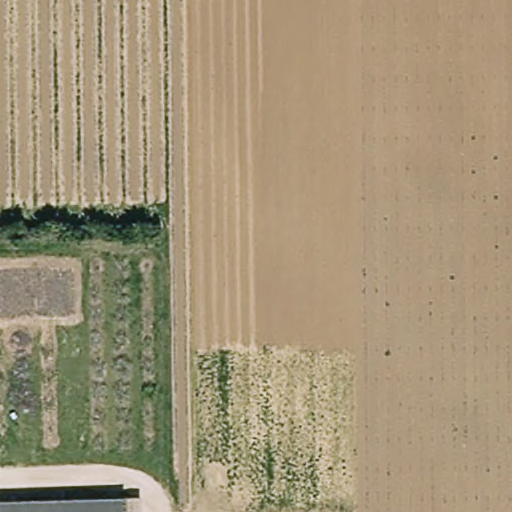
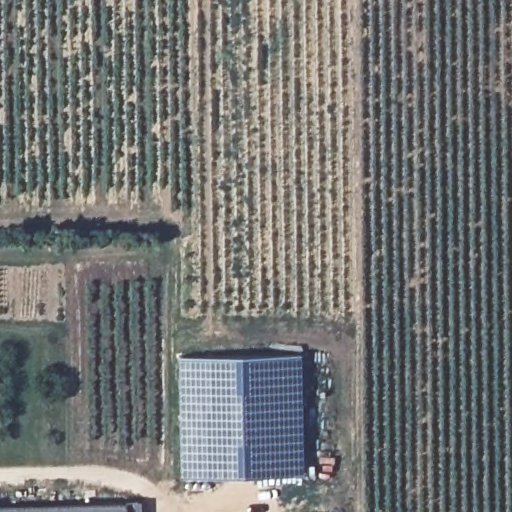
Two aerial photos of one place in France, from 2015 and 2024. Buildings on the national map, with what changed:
new [(177,357),(300,355),(302,476),(181,479),(177,357)]
unchanged [(0,500),(111,502),(125,503),(124,512),(0,512),(0,500)]

